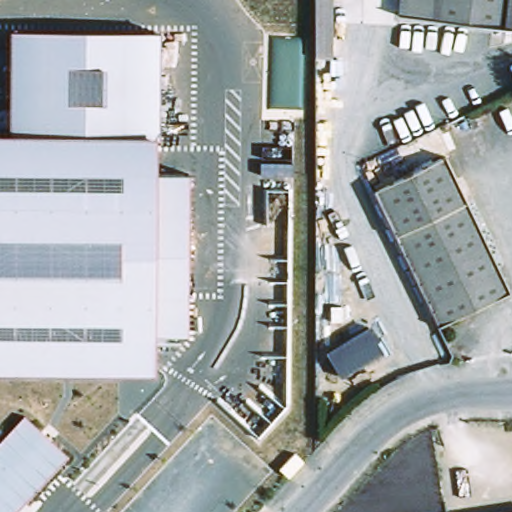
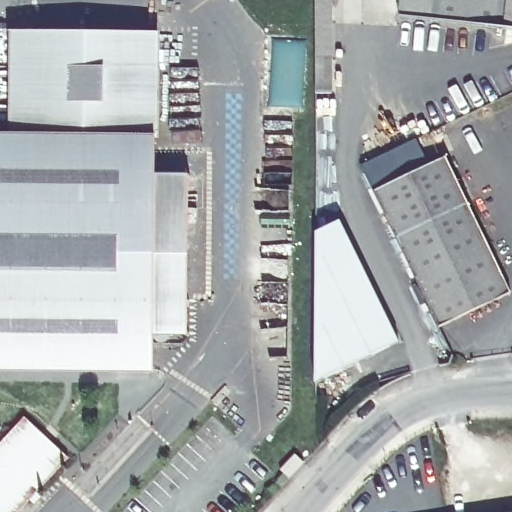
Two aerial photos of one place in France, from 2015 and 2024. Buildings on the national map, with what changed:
unchanged [(318,61),(318,0),(334,0),(334,62),(318,61)]
unchanged [(403,0),(512,0),(512,29),(402,15),(403,0)]
unchanged [(10,134),(11,30),(159,29),(159,173),(189,174),(188,332),(154,333),(154,374),(0,372),(0,134),(10,134)]
unchanged [(507,282),(498,306),(441,331),(376,195),(449,161),(507,282)]
new [(318,236),(343,224),(401,345),(317,386),(318,236)]
unchanged [(69,457),(17,512),(0,512),(0,441),(24,415),(69,457)]

